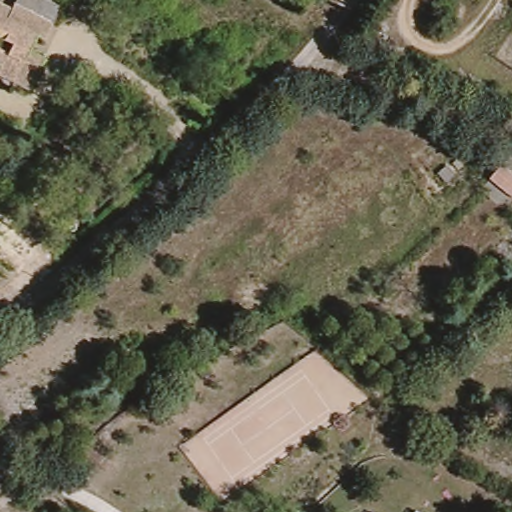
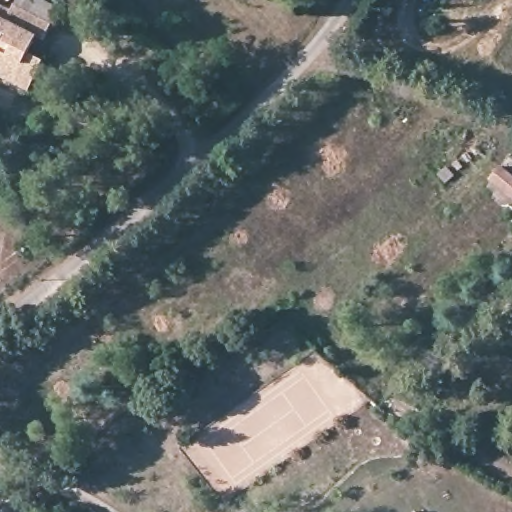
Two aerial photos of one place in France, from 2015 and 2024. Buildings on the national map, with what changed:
unchanged [(15,8),(18,2),(56,22),(49,35),(43,32),(33,51),(49,60),(33,88),(0,72),(4,63),(0,61),(0,1),(3,2),(15,8)]
unchanged [(502,164),(512,177),(512,208),(487,177),(502,164)]

